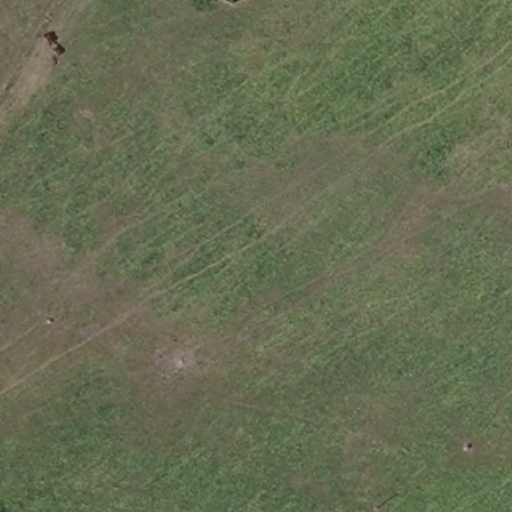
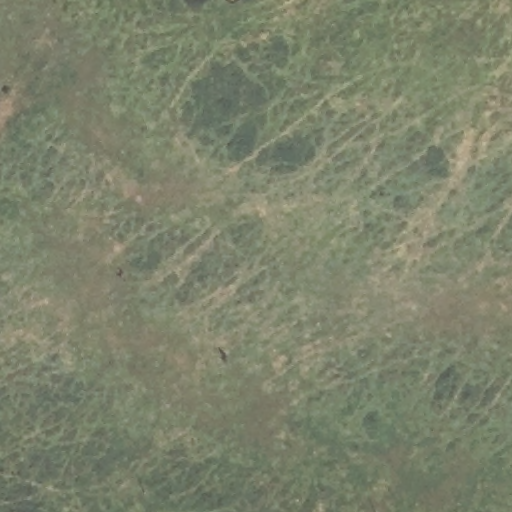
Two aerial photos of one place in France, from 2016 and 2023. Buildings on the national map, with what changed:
[]

